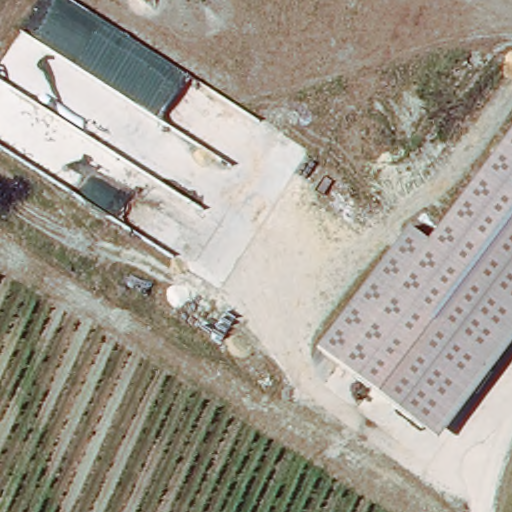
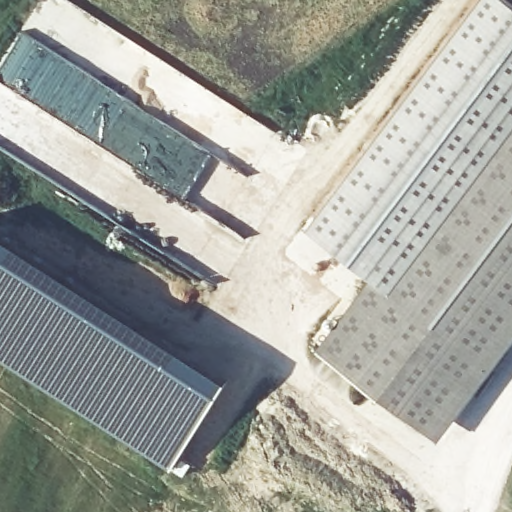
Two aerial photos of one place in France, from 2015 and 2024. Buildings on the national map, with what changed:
new [(512,1),(512,133),(429,240),(409,228),(371,279),(310,228),(480,0),(511,0),(512,1)]
unchanged [(429,240),(512,133),(512,340),(436,439),(317,350),(409,228),(429,240)]
new [(8,241),(6,245),(5,244),(0,250),(58,288),(158,351),(221,394),(173,470),(140,450),(0,358),(0,236),(8,241)]
new [(156,334),(229,380),(221,394),(158,351),(162,344),(153,338),(156,334)]

